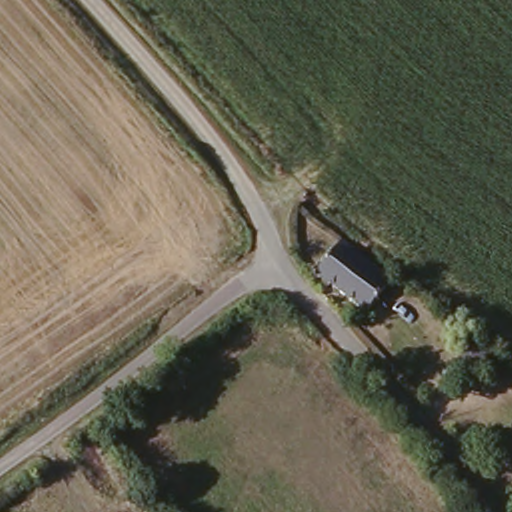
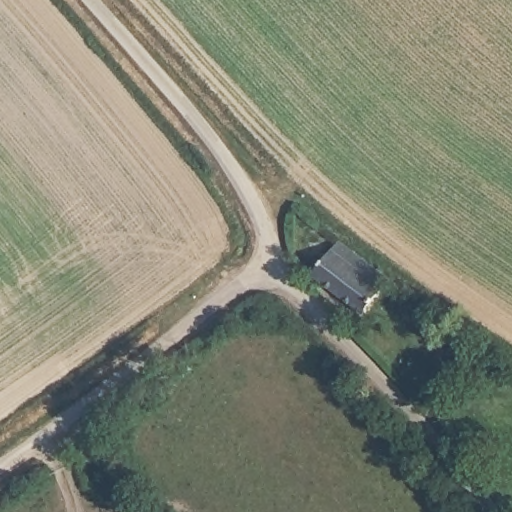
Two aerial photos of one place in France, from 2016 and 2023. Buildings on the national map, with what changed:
unchanged [(387,282),(367,310),(316,270),(337,243),(387,282)]
unchanged [(437,320),(422,334),(398,315),(412,294),(437,320)]
unchanged [(499,363),(482,378),(476,369),(455,384),(444,372),(481,341),(499,363)]

